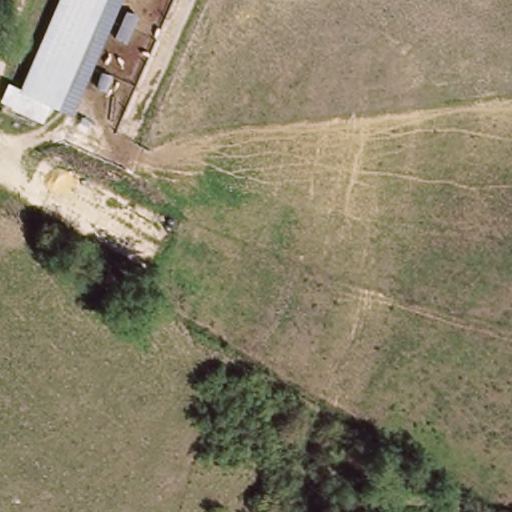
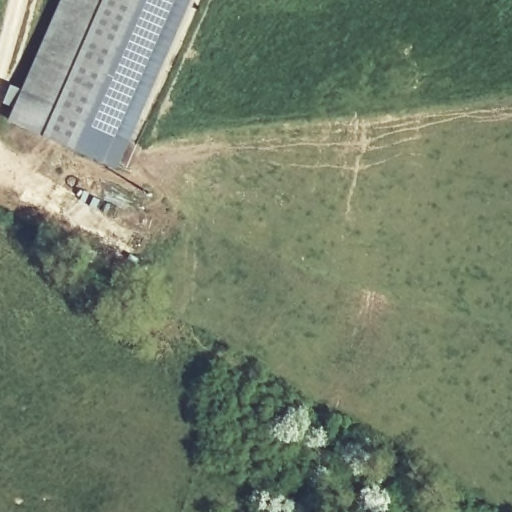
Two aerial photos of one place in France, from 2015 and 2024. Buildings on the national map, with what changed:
unchanged [(13,109),(4,105),(11,86),(22,90),(61,0),(103,0),(44,136),(9,122),(13,109)]
new [(44,136),(103,0),(193,0),(120,170),(44,136)]

